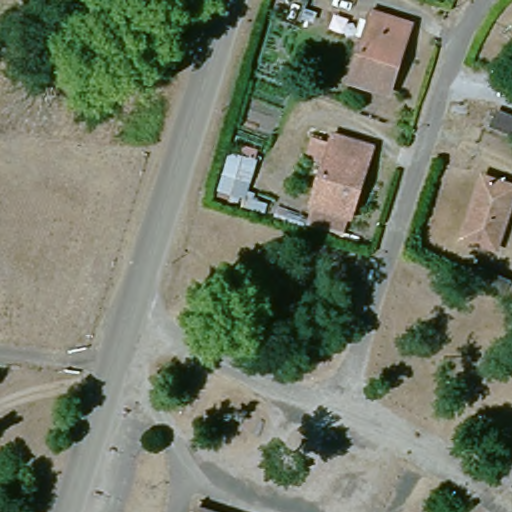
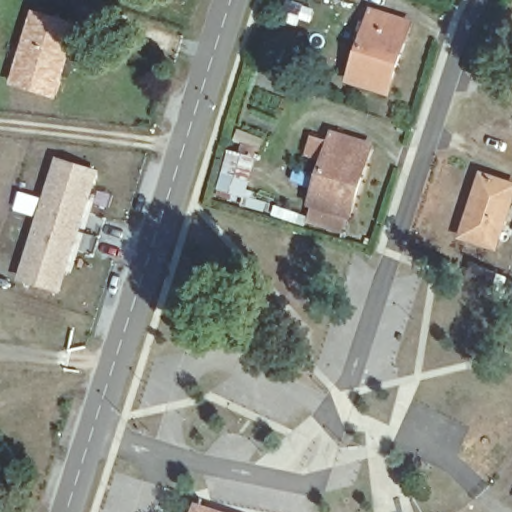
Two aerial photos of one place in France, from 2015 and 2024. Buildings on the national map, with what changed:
new [(10,84),(31,12),(78,25),(55,100),(10,84)]
unchanged [(352,80),(373,14),(408,25),(390,94),(352,80)]
unchanged [(313,205),(335,135),(374,146),(352,216),(313,205)]
unchanged [(271,214),(218,199),(228,151),(255,158),(250,184),(278,193),(271,214)]
new [(17,279),(56,157),(100,171),(61,291),(17,279)]
unchanged [(463,235),(483,174),(512,183),(512,205),(497,249),(463,235)]
unchanged [(477,261),(512,276),(512,277),(509,284),(506,293),(471,278),(473,272),(477,261)]
unchanged [(203,505),(222,512),(201,512),(203,505)]

